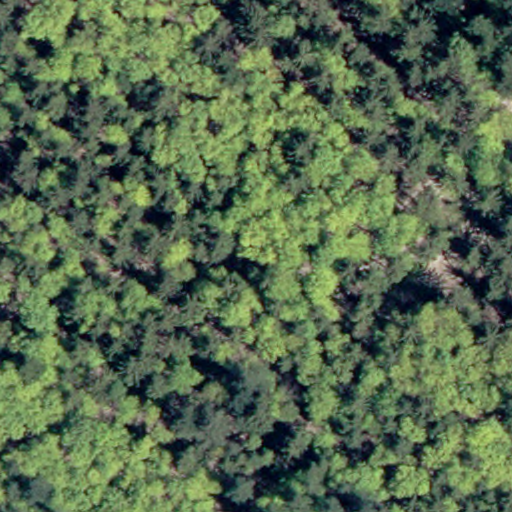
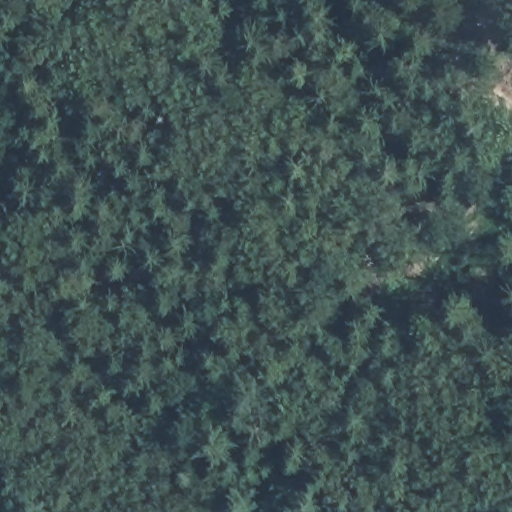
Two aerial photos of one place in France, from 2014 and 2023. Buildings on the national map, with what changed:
[]

